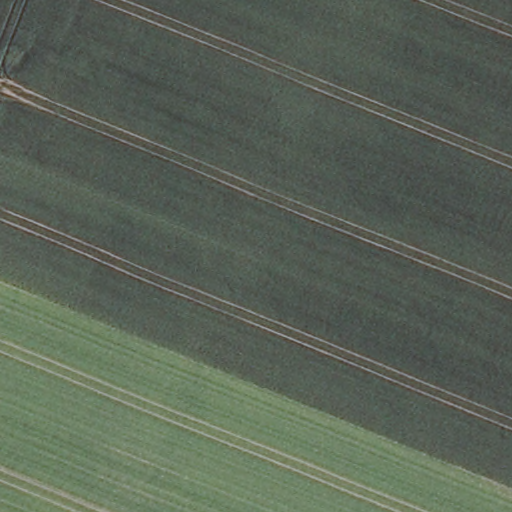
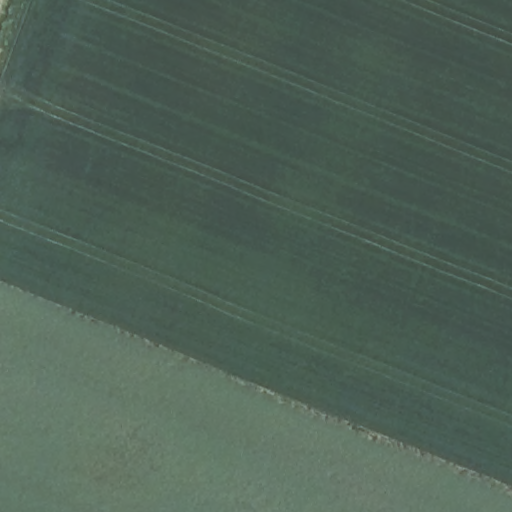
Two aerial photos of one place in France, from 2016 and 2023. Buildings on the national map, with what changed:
[]

